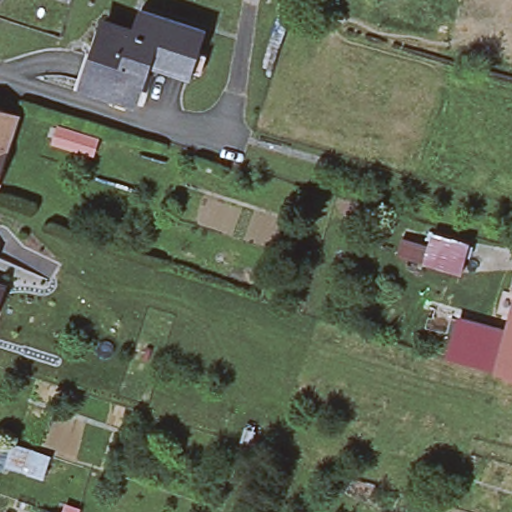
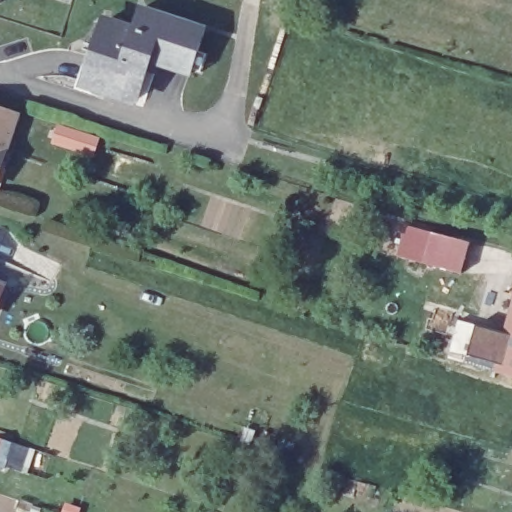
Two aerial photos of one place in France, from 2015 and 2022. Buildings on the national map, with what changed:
unchanged [(146,64),(136,95),(85,78),(81,76),(90,49),(94,50),(105,16),(134,26),(141,6),(203,28),(196,49),(206,52),(199,70),(189,67),(188,70),(159,60),(156,67),(146,64)]
unchanged [(22,116),(0,185),(0,109),(22,116)]
unchanged [(470,242),(461,273),(424,264),(397,256),(403,237),(430,244),(434,232),(470,242)]
unchanged [(0,313),(0,283),(9,286),(0,313)]
unchanged [(512,377),(497,372),(498,371),(508,332),(512,315),(512,377)]
unchanged [(444,356),(456,317),(508,332),(498,371),(444,356)]
unchanged [(13,442),(3,468),(0,467),(0,438),(13,442)]

